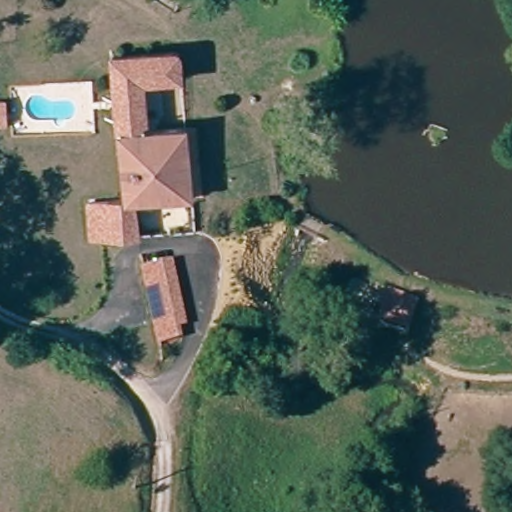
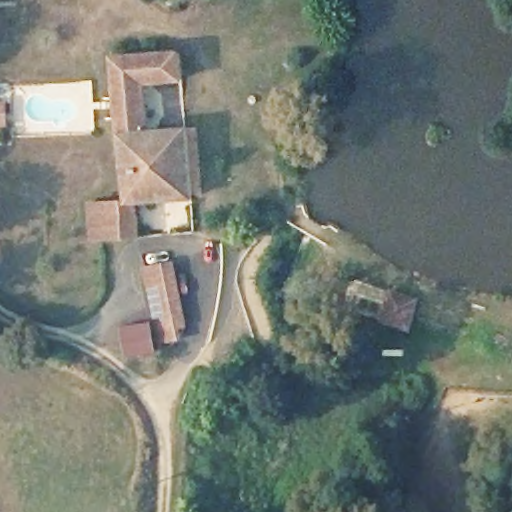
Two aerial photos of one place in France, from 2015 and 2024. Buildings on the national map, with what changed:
unchanged [(115,239),(110,205),(125,202),(107,57),(168,50),(179,49),(182,78),(142,81),(147,126),(188,123),(198,198),(147,202),(151,238),(115,239)]
unchanged [(303,66),(305,77),(291,79),(289,68),(303,66)]
unchanged [(159,321),(142,266),(176,259),(189,314),(159,321)]
unchanged [(420,303),(410,337),(377,326),(392,290),(420,303)]

